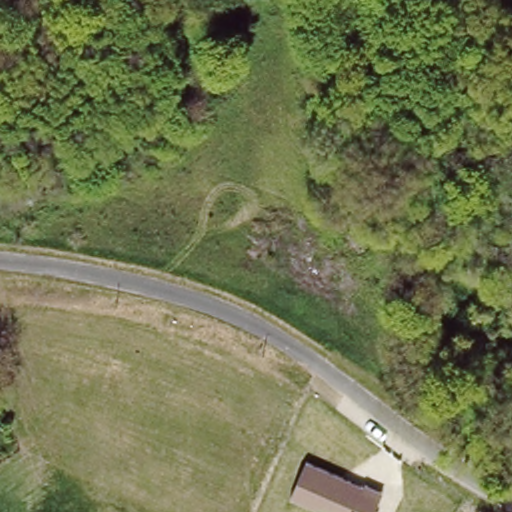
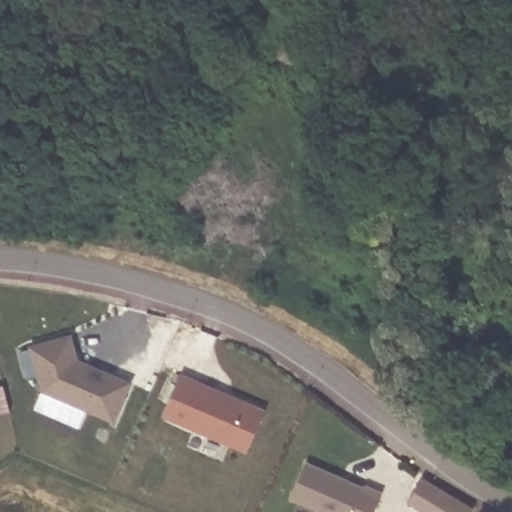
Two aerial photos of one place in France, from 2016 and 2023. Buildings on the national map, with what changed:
new [(76,336),(82,361),(95,367),(93,370),(101,374),(103,370),(134,384),(117,422),(47,391),(36,347),(76,336)]
new [(248,453),(163,417),(181,374),(265,408),(248,453)]
unchanged [(364,486),(364,484),(382,493),(374,512),(320,512),(290,499),(306,462),(364,486)]

